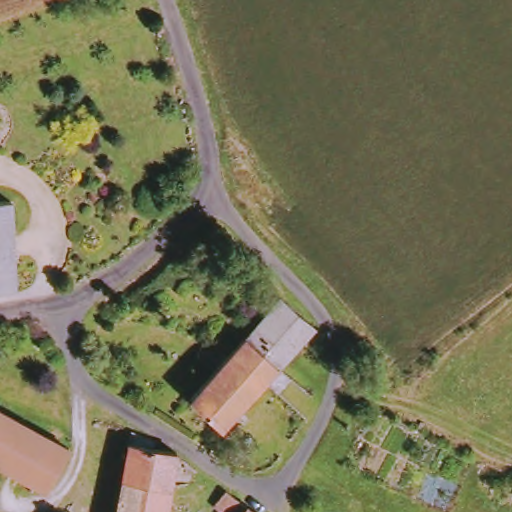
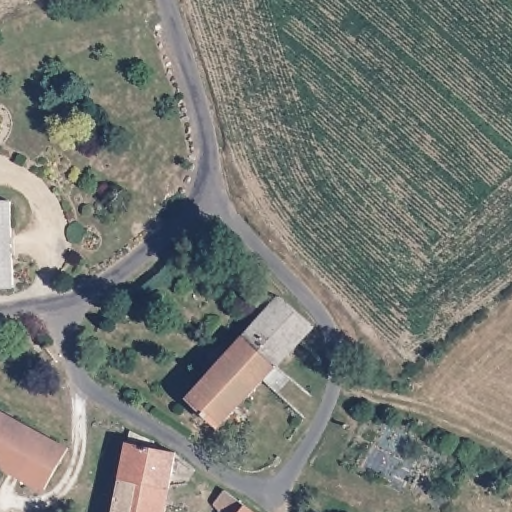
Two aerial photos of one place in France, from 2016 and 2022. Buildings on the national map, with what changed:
unchanged [(18,206),(23,293),(18,291),(0,291),(0,207),(18,206)]
unchanged [(318,331),(225,431),(195,402),(284,302),(318,331)]
unchanged [(17,421),(77,451),(57,494),(0,464),(0,409),(17,421)]
unchanged [(172,512),(121,512),(135,435),(159,443),(160,451),(182,459),(172,512)]
unchanged [(216,507),(227,492),(254,512),(224,512),(216,507)]

